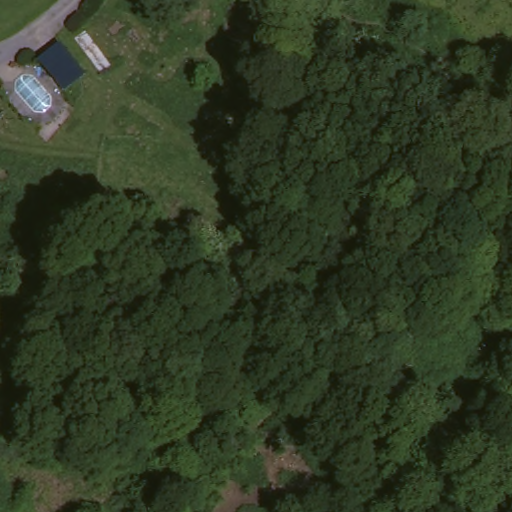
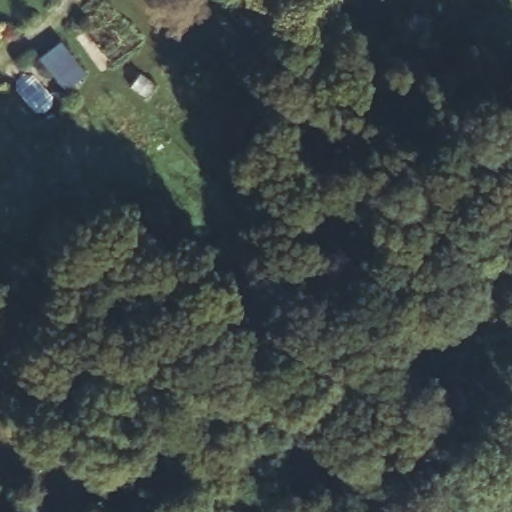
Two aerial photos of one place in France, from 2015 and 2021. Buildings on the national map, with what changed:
unchanged [(40,56),(64,39),(91,70),(68,87),(40,56)]
unchanged [(259,170),(243,172),(240,144),(256,142),(259,170)]
unchanged [(262,219),(241,222),(236,181),(257,177),(262,219)]

